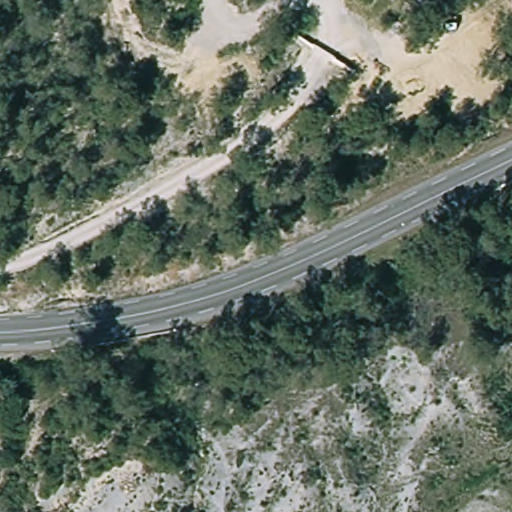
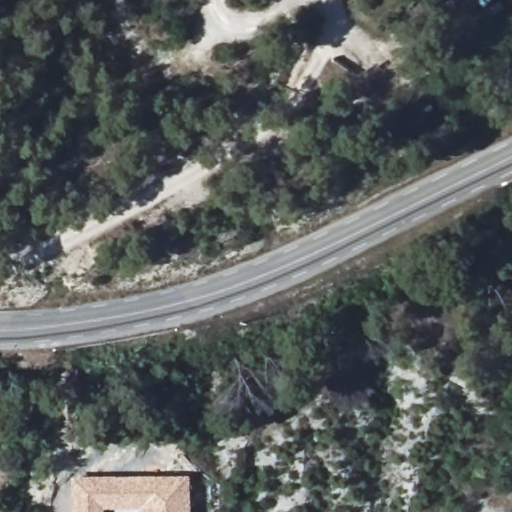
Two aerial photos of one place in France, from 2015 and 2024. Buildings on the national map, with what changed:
new [(187,512),(137,512),(137,509),(101,510),(101,512),(70,512),(70,478),(186,475),(187,512)]

